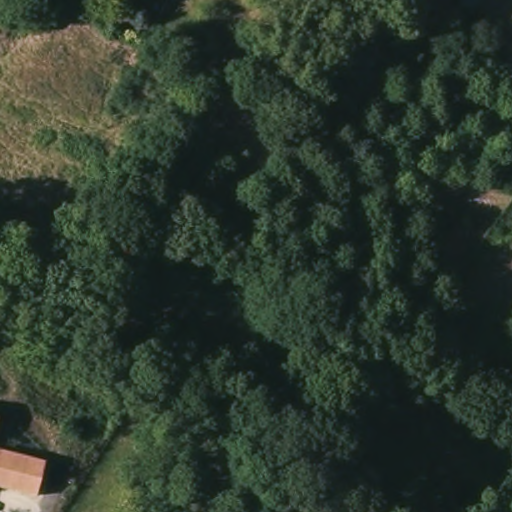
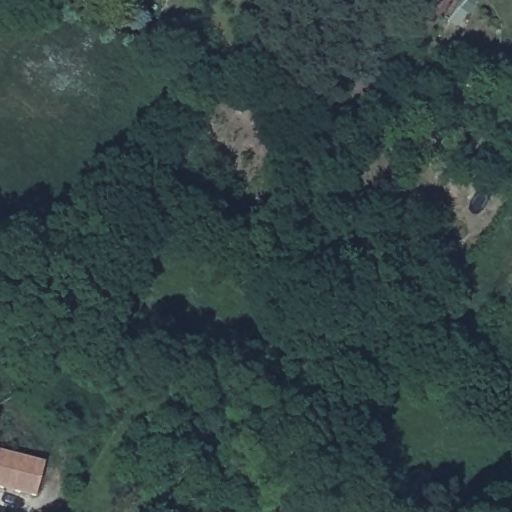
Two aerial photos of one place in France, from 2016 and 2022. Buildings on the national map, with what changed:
unchanged [(1,418),(0,424),(0,418),(1,418)]
unchanged [(14,452),(50,461),(41,496),(5,487),(0,485),(0,449),(14,452)]

